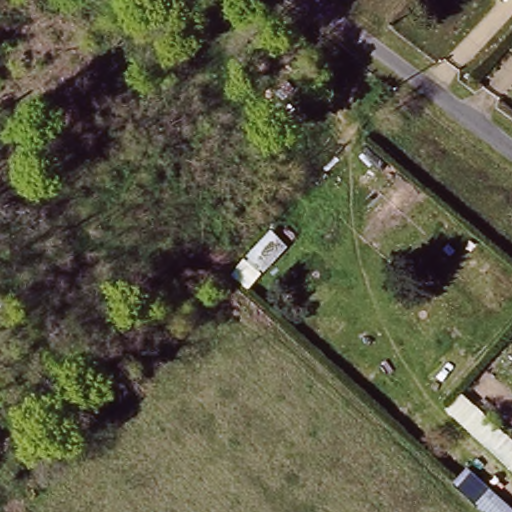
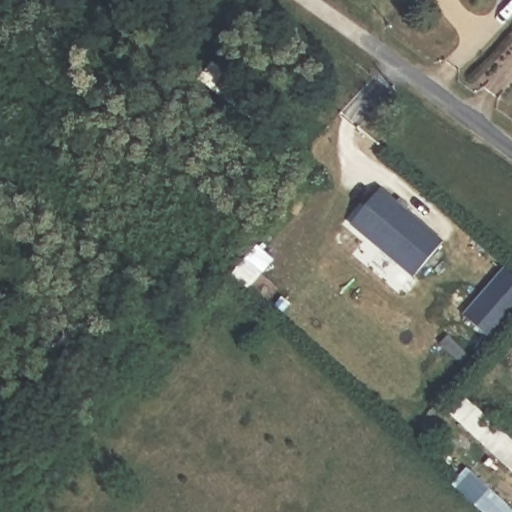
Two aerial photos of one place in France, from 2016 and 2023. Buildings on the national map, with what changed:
new [(414,277),(349,226),(381,189),(394,199),(400,198),(409,205),(407,210),(444,241),(414,277)]
new [(507,270),(512,275),(512,315),(491,339),(464,316),(507,270)]
new [(512,440),(512,472),(449,412),(462,396),(512,440)]
unchanged [(467,467),(512,507),(512,512),(481,512),(451,485),(467,467)]

